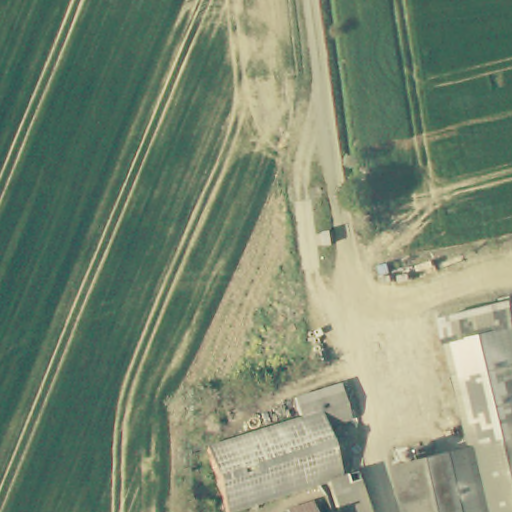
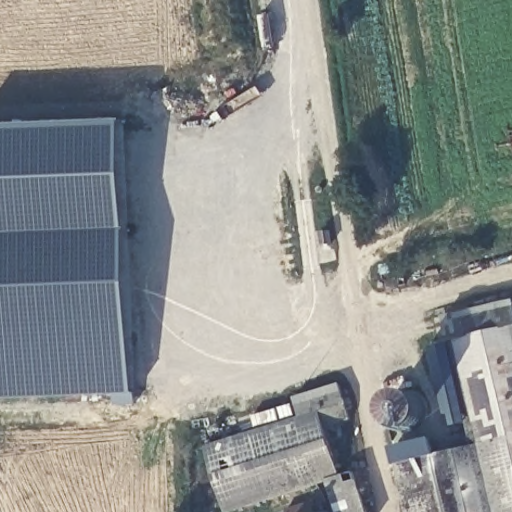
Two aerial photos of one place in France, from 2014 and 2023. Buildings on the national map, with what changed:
new [(136,390),(0,393),(0,120),(121,117),(136,390)]
unchanged [(442,316),(512,300),(512,436),(474,445),(442,316)]
new [(449,425),(430,347),(448,343),(468,421),(449,425)]
unchanged [(298,393),(341,381),(350,417),(324,425),(339,475),(354,470),(367,512),(338,512),(327,478),(225,508),(208,443),(304,414),(298,393)]
new [(421,396),(425,404),(425,412),(424,421),(418,426),(411,430),(403,430),(393,426),(389,417),(389,411),(390,405),(395,397),(403,393),(414,393),(421,396)]
unchanged [(409,512),(398,465),(512,436),(512,512),(409,512)]
new [(398,465),(395,448),(433,439),(435,455),(398,465)]
unchanged [(315,500),(319,512),(289,512),(288,508),(315,500)]
unchanged [(332,512),(322,512),(331,510),(332,512)]

